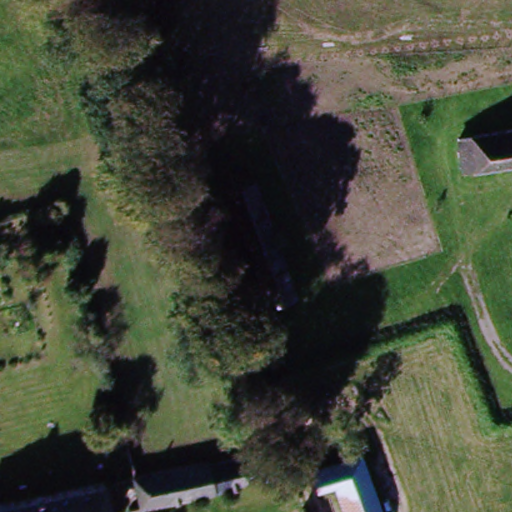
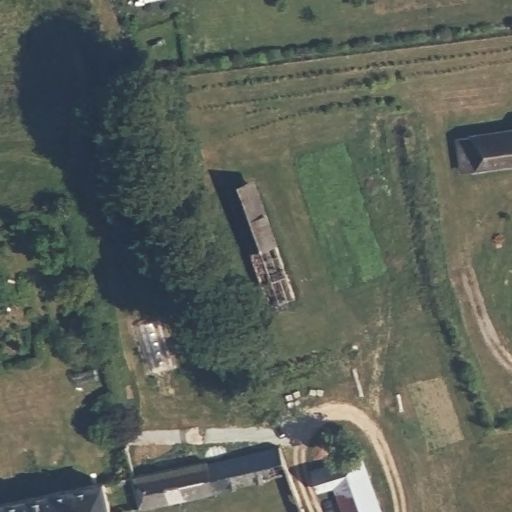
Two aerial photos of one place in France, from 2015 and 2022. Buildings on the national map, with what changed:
unchanged [(462,170),(457,134),(512,127),(512,164),(462,170)]
unchanged [(255,179),(291,285),(261,295),(225,189),(255,179)]
unchanged [(285,512),(275,480),(145,510),(137,480),(281,448),(306,512),(285,512)]
unchanged [(383,512),(344,512),(336,491),(321,496),(312,471),(363,457),(383,512)]
unchanged [(115,512),(0,512),(0,498),(107,475),(115,512)]

